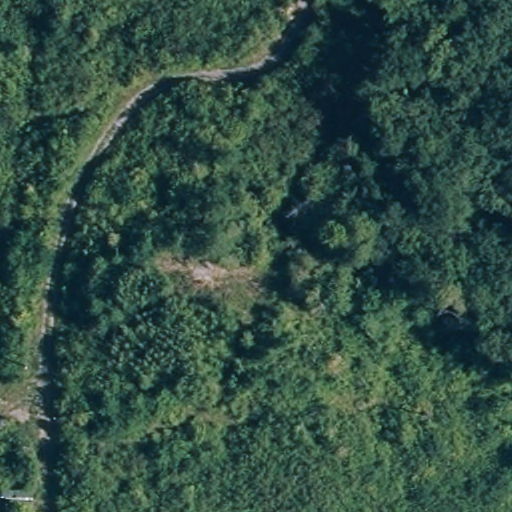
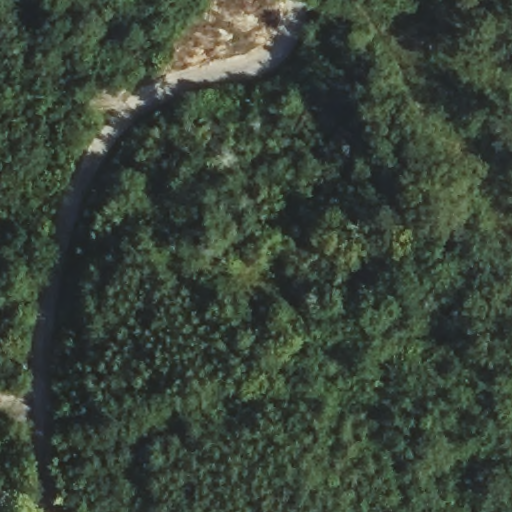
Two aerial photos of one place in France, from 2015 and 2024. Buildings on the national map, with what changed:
[]

